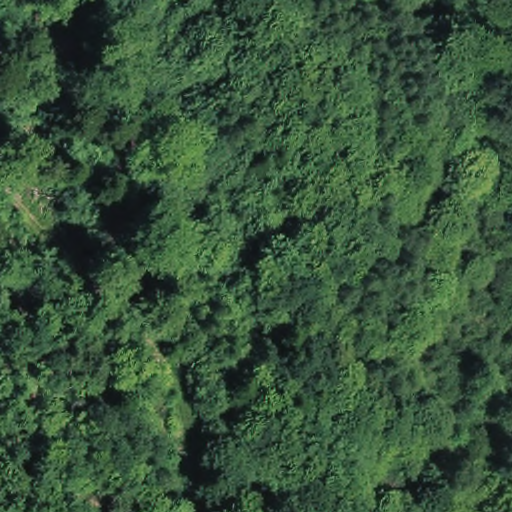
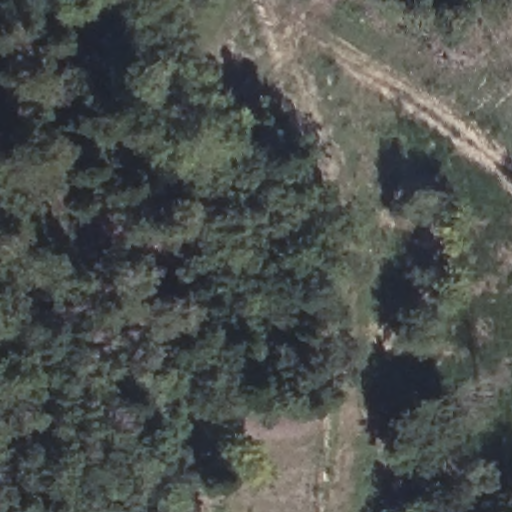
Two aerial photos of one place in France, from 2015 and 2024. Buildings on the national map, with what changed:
[]

